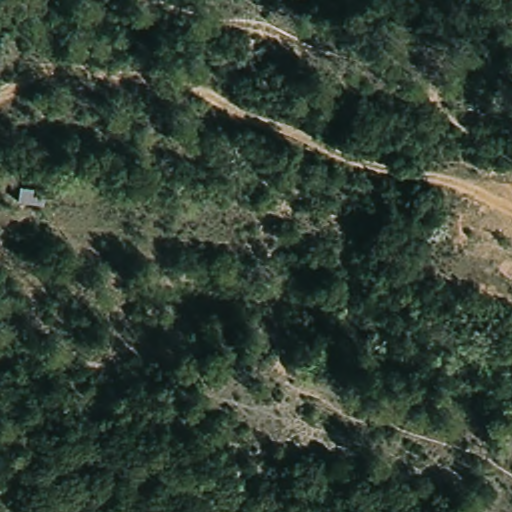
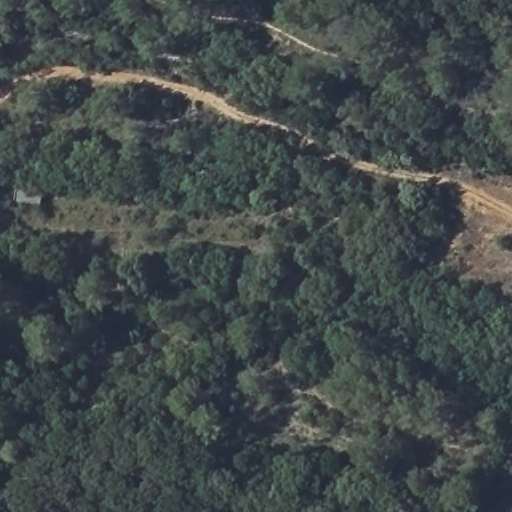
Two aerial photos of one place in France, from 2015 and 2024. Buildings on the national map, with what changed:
unchanged [(13,189),(38,189),(39,208),(12,206),(13,189)]

